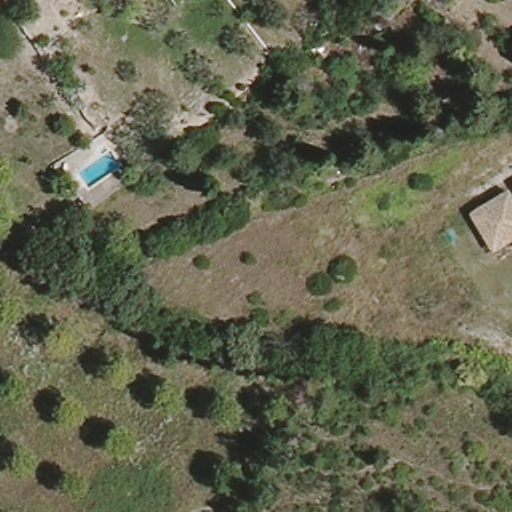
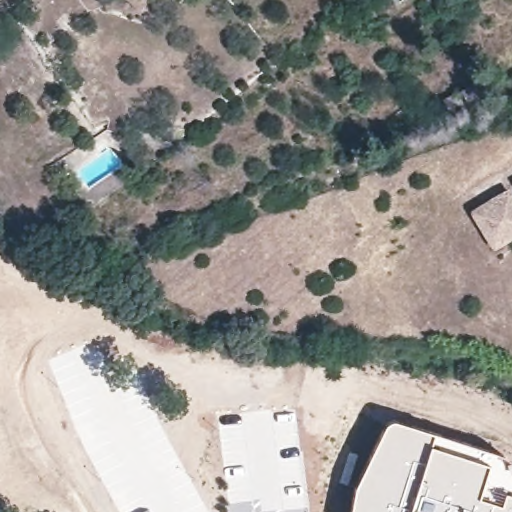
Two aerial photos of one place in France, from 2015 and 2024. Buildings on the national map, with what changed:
unchanged [(462,214),(512,184),(512,242),(492,255),(462,214)]
new [(385,422),(390,418),(432,431),(410,500),(407,512),(348,512),(354,485),(385,422)]
new [(432,431),(505,456),(512,462),(512,512),(407,512),(410,500),(432,431)]

